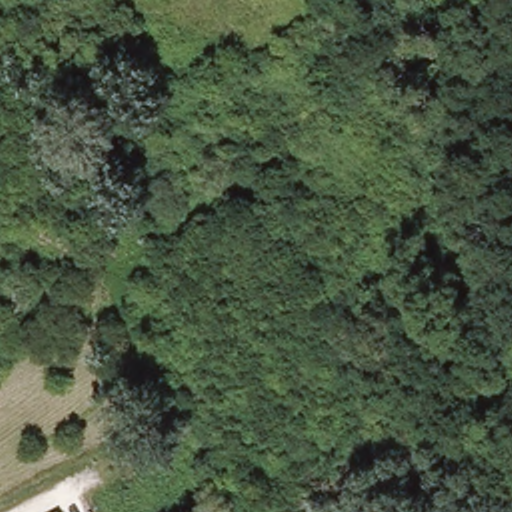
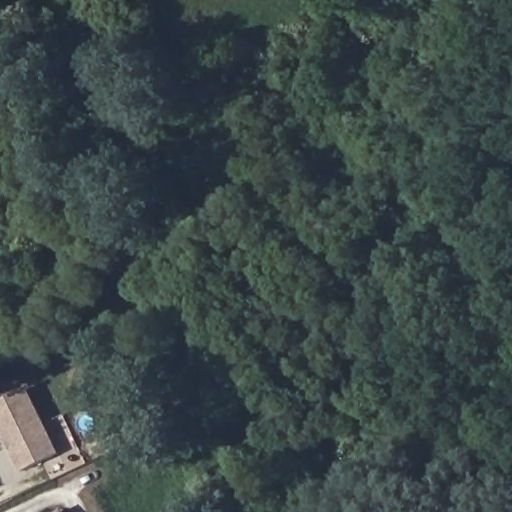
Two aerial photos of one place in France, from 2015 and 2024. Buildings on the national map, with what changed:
new [(58,454),(22,473),(0,430),(0,403),(25,390),(58,454)]
unchanged [(55,503),(60,512),(40,512),(55,503)]

